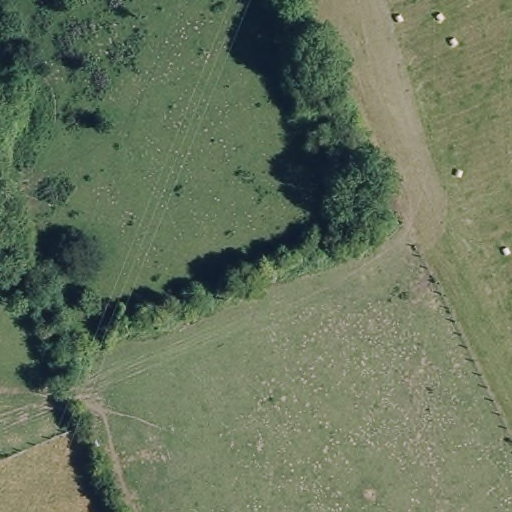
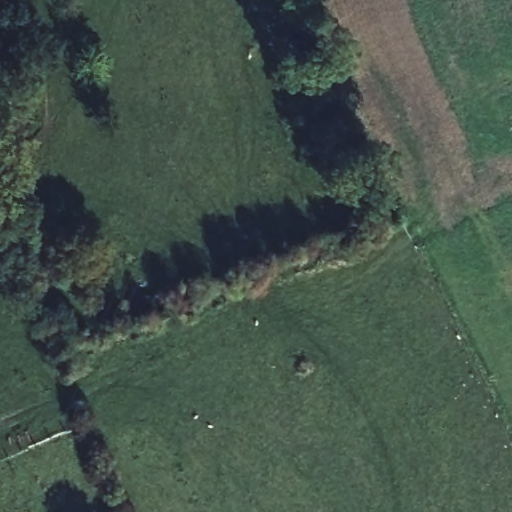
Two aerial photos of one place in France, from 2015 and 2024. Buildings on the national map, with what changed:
[]

